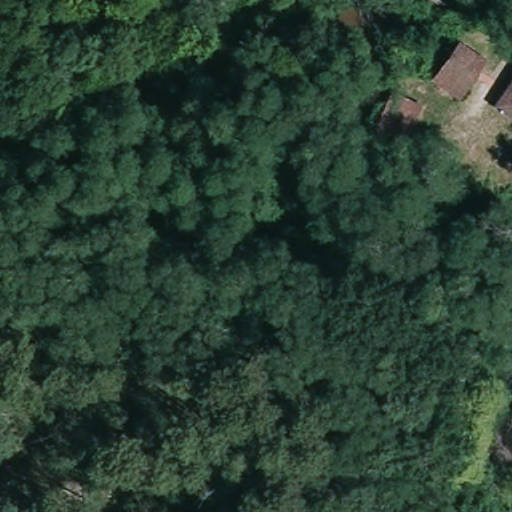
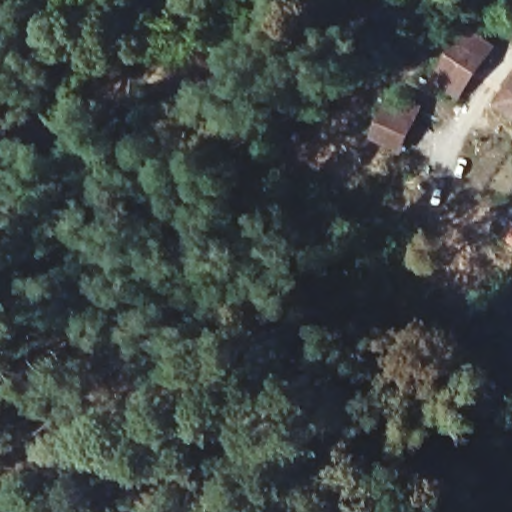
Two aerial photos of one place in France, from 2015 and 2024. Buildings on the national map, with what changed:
unchanged [(480,58),(453,100),(431,90),(456,44),(480,58)]
unchanged [(492,108),(512,79),(512,124),(492,108)]
new [(368,138),(387,96),(411,107),(413,101),(423,105),(402,153),(368,138)]
unchanged [(512,153),(512,157),(503,169),(488,162),(498,142),(512,153)]

